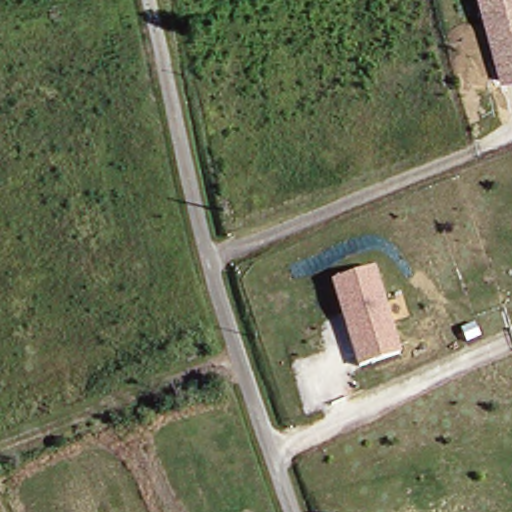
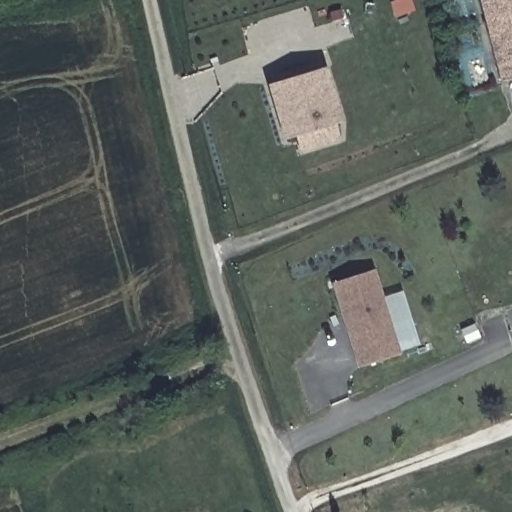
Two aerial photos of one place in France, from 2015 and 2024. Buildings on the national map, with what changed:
unchanged [(485,0),(512,0),(512,78),(503,80),(485,0)]
new [(302,147),(298,134),(287,137),(272,82),(326,67),(341,122),(337,123),(341,137),(302,147)]
unchanged [(333,285),(373,271),(402,355),(362,368),(348,328),(345,317),(333,285)]

